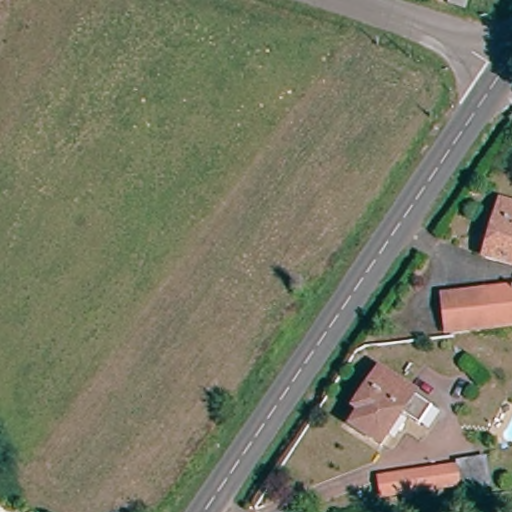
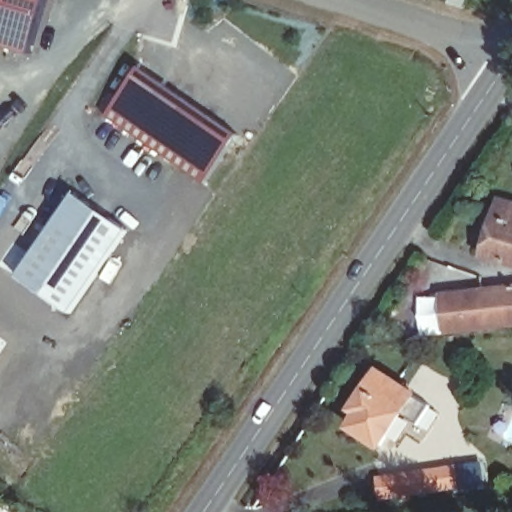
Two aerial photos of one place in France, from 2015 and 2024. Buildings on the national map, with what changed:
new [(46,0),(30,55),(0,46),(0,0),(46,0)]
new [(140,66),(239,135),(204,185),(107,115),(140,66)]
new [(16,277),(75,194),(128,230),(70,314),(16,277)]
unchanged [(512,273),(482,261),(504,210),(512,213),(512,273)]
unchanged [(503,291),(512,291),(512,328),(506,328),(444,333),(443,298),(503,291)]
unchanged [(437,409),(426,427),(407,416),(387,450),(358,432),(352,428),(383,377),(437,409)]
unchanged [(488,463),(491,489),(466,491),(465,483),(413,487),(414,493),(407,493),(407,487),(386,490),(384,472),(463,466),(488,463)]

